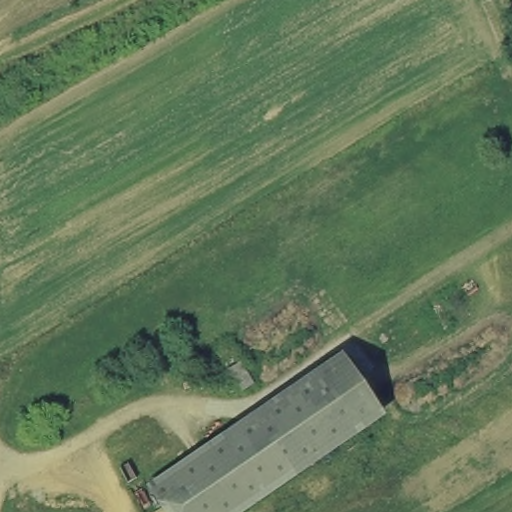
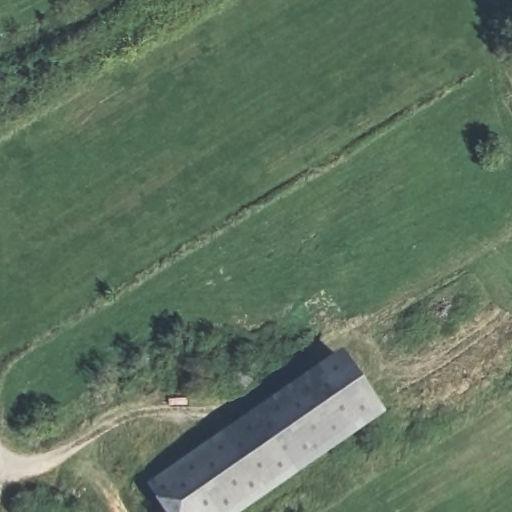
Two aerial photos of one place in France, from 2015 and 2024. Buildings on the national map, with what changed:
unchanged [(157,480),(246,420),(345,353),(383,412),(235,512),(178,512),(157,480)]

